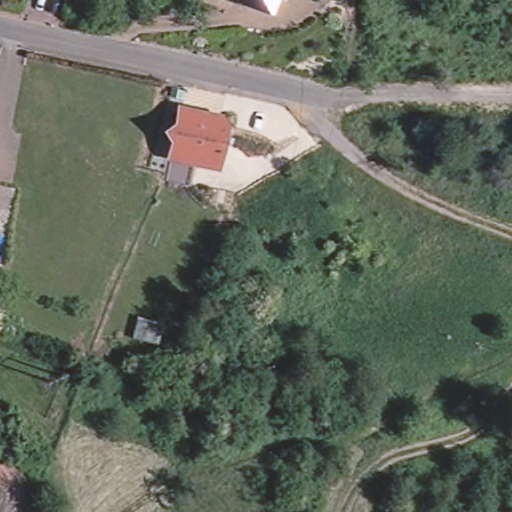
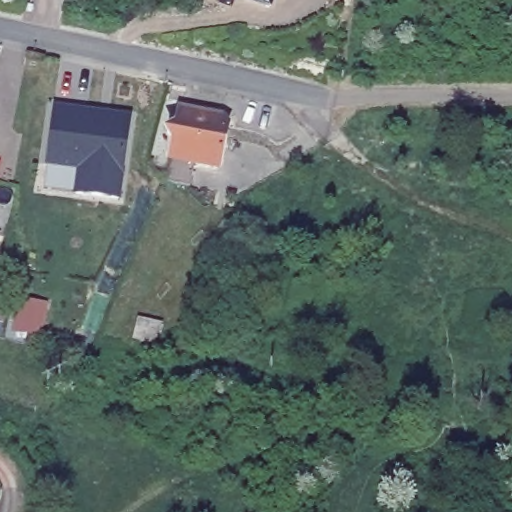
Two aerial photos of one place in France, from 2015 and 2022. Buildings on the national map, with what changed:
unchanged [(240,1),(237,0),(271,0),(267,11),(240,1)]
unchanged [(165,168),(165,163),(172,143),(175,129),(168,121),(178,115),(181,101),(221,111),(227,119),(217,156),(195,150),(190,168),(188,173),(165,168)]
new [(125,177),(122,200),(73,194),(77,170),(45,165),(53,103),(133,113),(125,177)]

